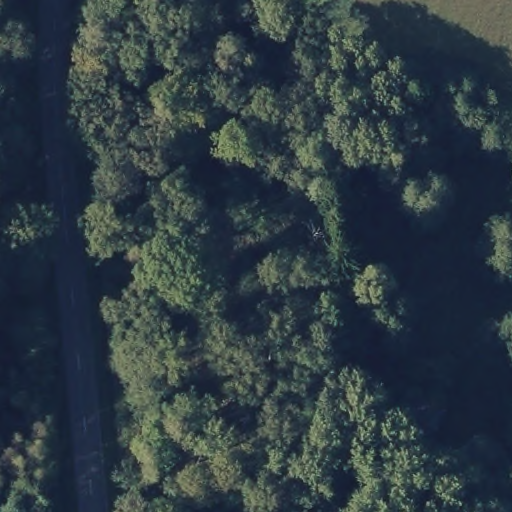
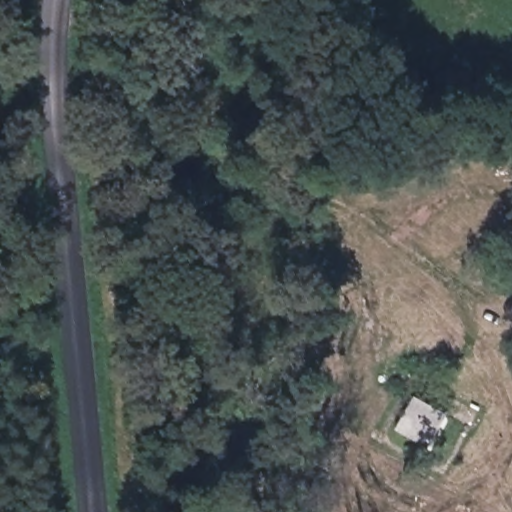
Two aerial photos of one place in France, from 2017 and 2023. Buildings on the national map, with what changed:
unchanged [(446,409),(427,443),(396,427),(414,392),(446,409)]

